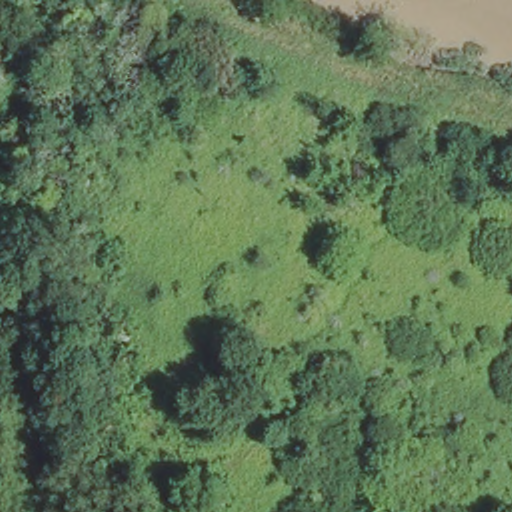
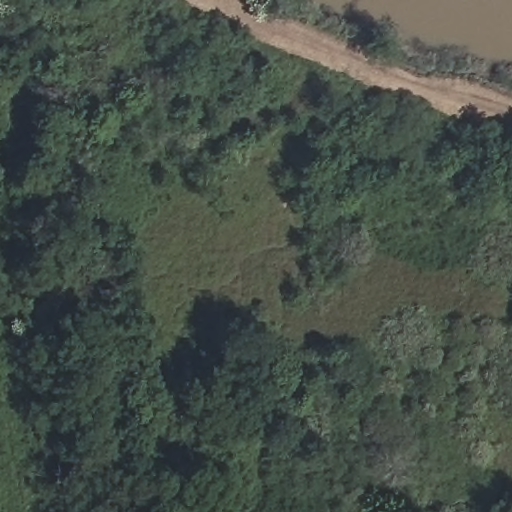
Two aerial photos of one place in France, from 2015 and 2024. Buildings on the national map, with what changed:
unchanged [(6,320),(0,320),(0,307),(6,307),(6,320)]

